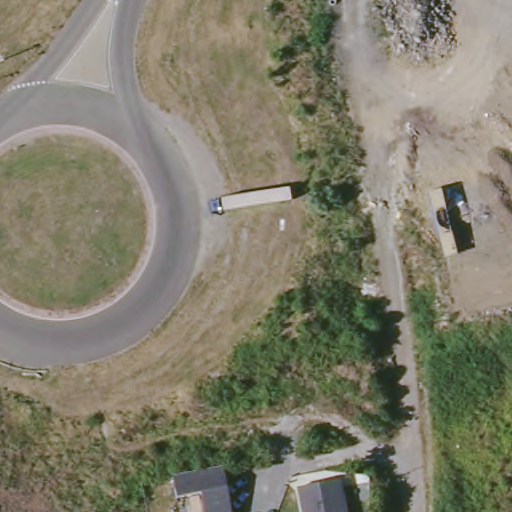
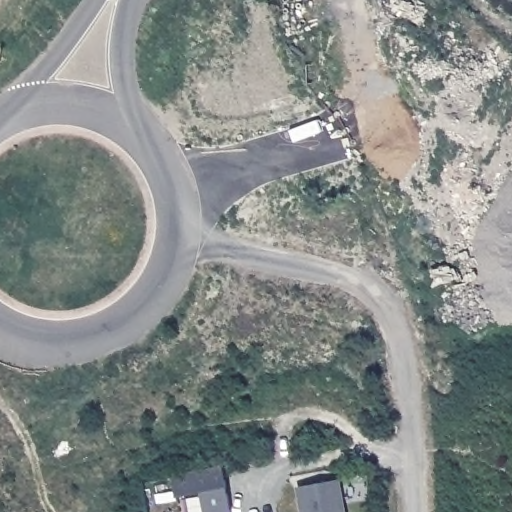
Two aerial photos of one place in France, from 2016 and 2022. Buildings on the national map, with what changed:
unchanged [(195,474),(222,469),(230,512),(203,512),(200,493),(194,494),(175,498),(172,478),(191,474),(195,474)]
unchanged [(342,512),(303,512),(299,488),(336,481),(342,512)]

